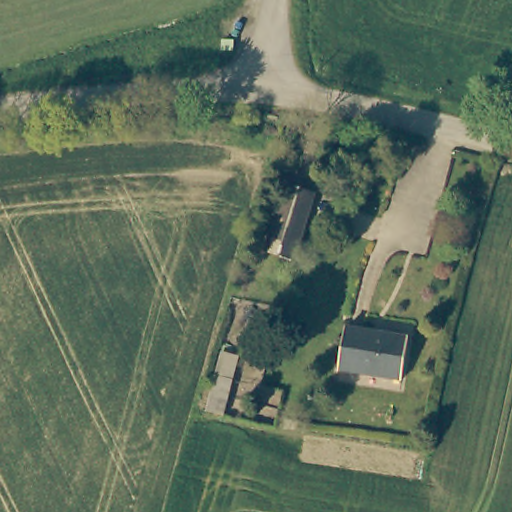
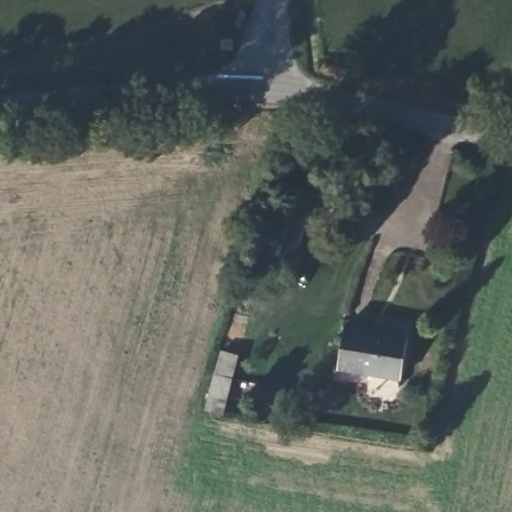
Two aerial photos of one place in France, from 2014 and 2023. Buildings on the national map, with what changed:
unchanged [(294,261),(264,253),(283,187),(315,197),(294,261)]
unchanged [(408,335),(402,374),(338,364),(344,325),(408,335)]
unchanged [(224,401),(209,396),(216,370),(219,360),(235,364),(228,388),(224,401)]

